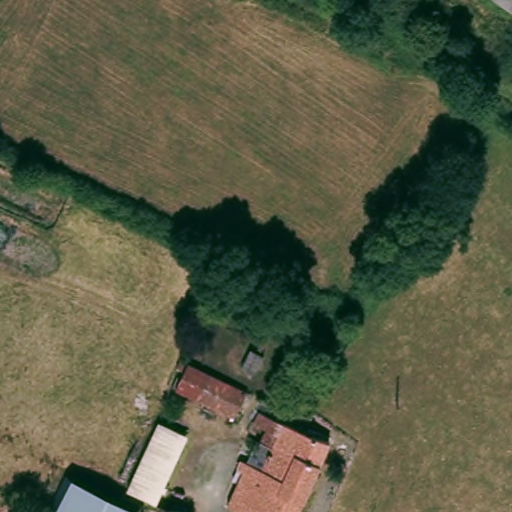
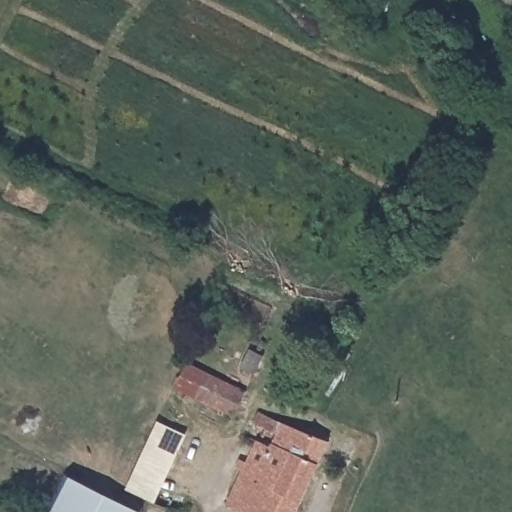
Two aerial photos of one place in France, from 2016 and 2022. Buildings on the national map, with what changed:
unchanged [(512,5),(503,0),(512,0),(512,5)]
unchanged [(247,392),(235,415),(179,389),(187,371),(181,368),(184,363),(247,392)]
unchanged [(252,453),(260,457),(271,428),(261,422),(266,410),(333,441),(301,512),(257,512),(238,503),(252,472),(245,469),(252,453)]
unchanged [(126,489),(158,421),(187,435),(156,504),(126,489)]
unchanged [(136,507),(145,511),(145,512),(55,512),(71,477),(136,507)]

